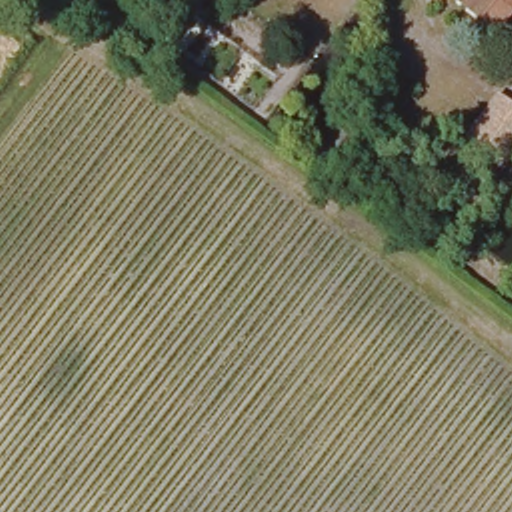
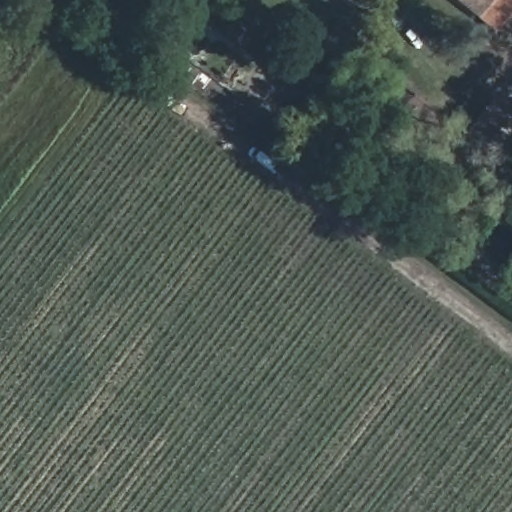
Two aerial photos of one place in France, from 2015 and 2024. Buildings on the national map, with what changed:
unchanged [(451,0),(509,0),(491,30),(451,0)]
unchanged [(512,146),(498,164),(465,136),(495,94),(512,106),(512,146)]

